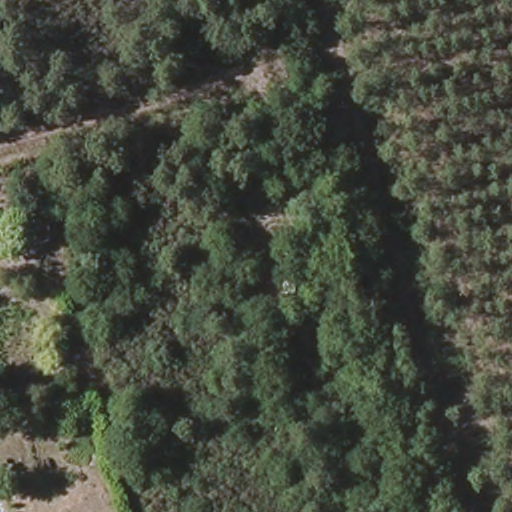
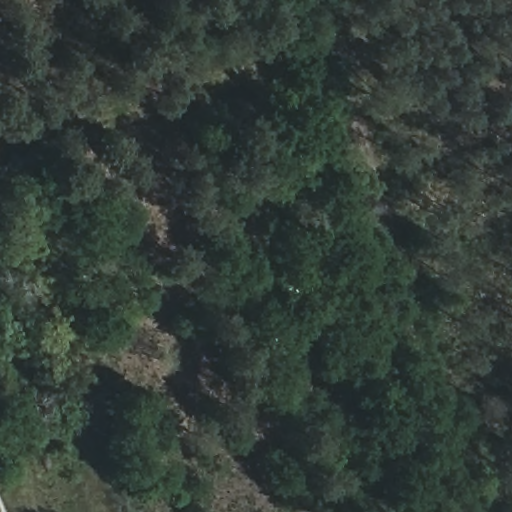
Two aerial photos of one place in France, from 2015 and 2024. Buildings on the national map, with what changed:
unchanged [(234,191),(267,184),(271,196),(305,189),(308,205),(281,217),(285,230),(252,237),(234,191)]

